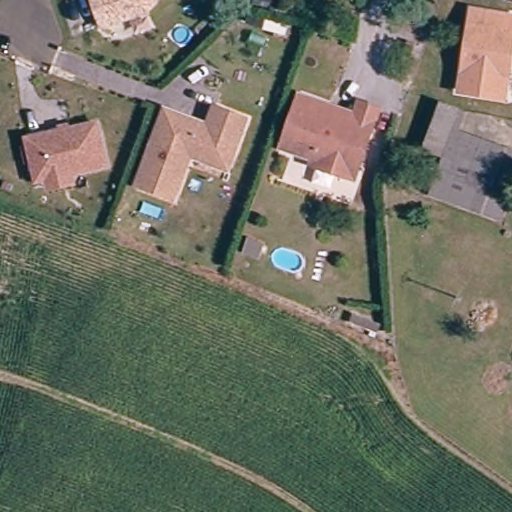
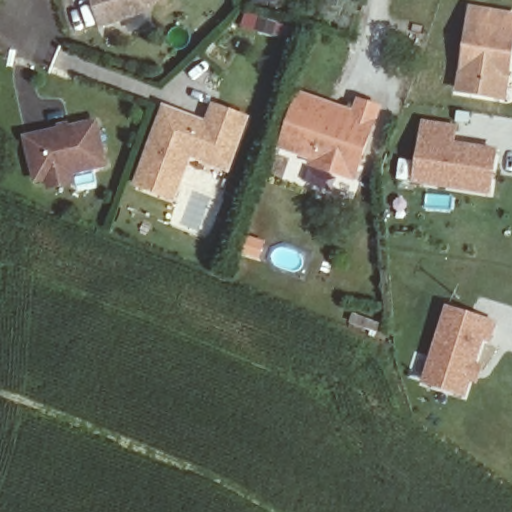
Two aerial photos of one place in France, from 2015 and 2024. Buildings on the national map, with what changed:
unchanged [(106,26),(97,0),(162,0),(151,12),(106,26)]
unchanged [(501,98),(463,92),(478,9),(512,15),(512,71),(506,70),(501,98)]
unchanged [(329,179),(304,169),(307,162),(275,149),(295,99),(350,120),(355,106),(372,113),(373,122),(353,172),(347,187),(329,179)]
unchanged [(207,164),(188,156),(170,200),(134,185),(161,121),(166,107),(181,113),(208,124),(216,106),(247,118),(233,153),(225,172),(207,164)]
new [(458,127),(456,143),(499,148),(492,196),(413,185),(422,121),(458,127)]
unchanged [(99,124),(105,168),(34,178),(28,135),(99,124)]
demolished [(449,153),(456,135),(460,126),(464,128),(491,139),(512,148),(512,194),(503,217),(434,188),(449,153)]
new [(498,323),(492,345),(485,342),(479,364),(485,366),(478,386),(472,384),(466,398),(422,384),(447,307),(498,323)]

